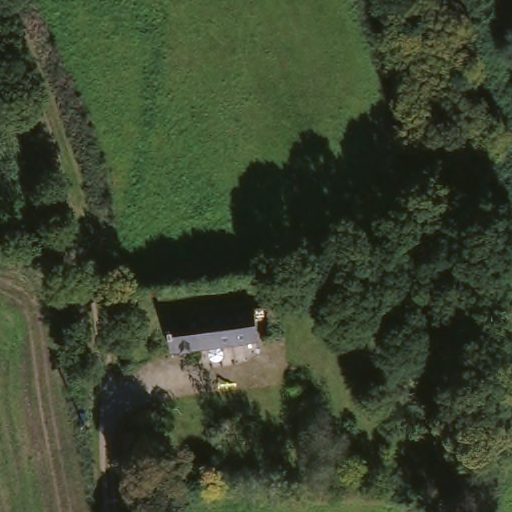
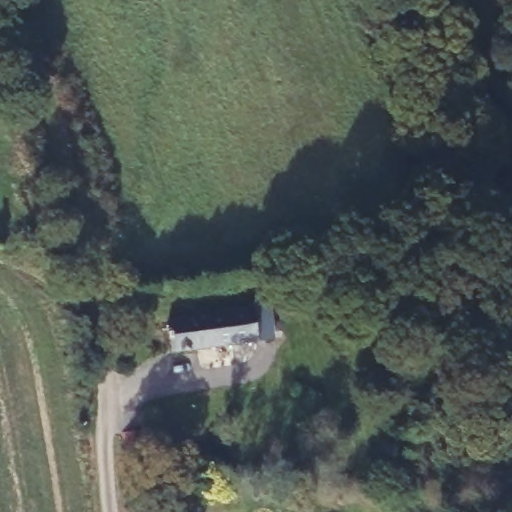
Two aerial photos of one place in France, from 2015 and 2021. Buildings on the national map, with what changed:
unchanged [(150,342),(163,341),(161,327),(179,325),(211,320),(224,318),(264,312),(268,341),(184,355),(164,357),(153,359),(150,342)]
unchanged [(128,467),(126,439),(144,436),(150,466),(128,469),(128,467)]

